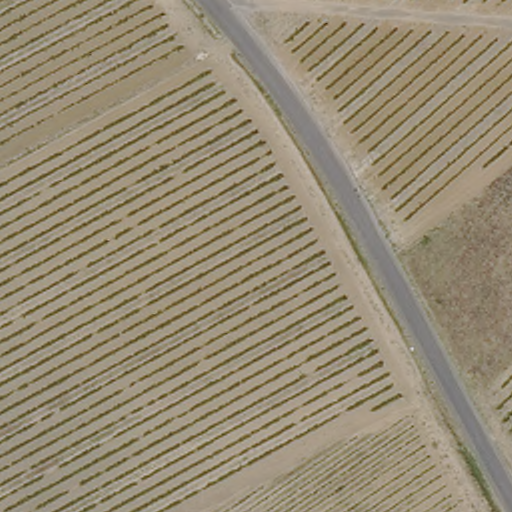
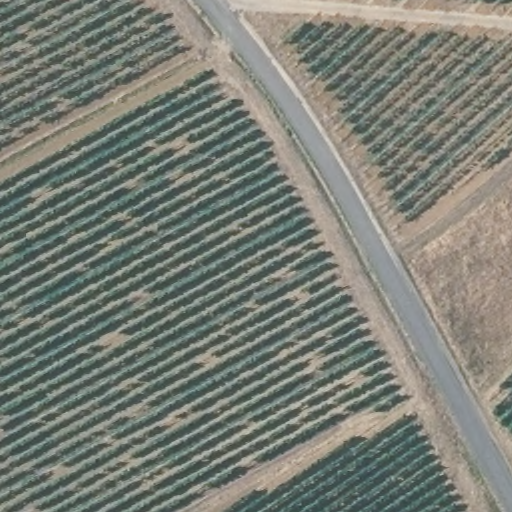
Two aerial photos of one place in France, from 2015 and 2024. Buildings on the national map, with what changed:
[]

